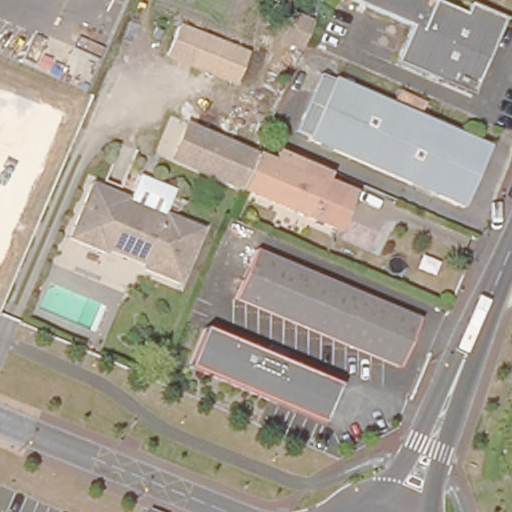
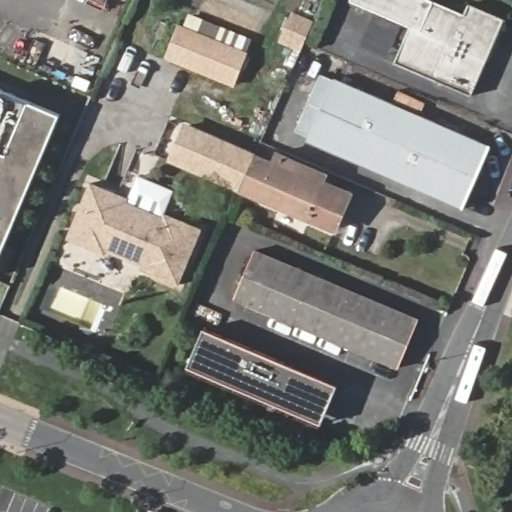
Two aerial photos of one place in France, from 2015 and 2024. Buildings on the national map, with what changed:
unchanged [(428,0),(458,13),(463,0),(499,15),(481,57),(466,91),(440,80),(396,60),(409,29),(361,7),(354,4),(347,1),(347,0),(428,0)]
unchanged [(289,11),(311,20),(297,50),(277,42),(289,11)]
unchanged [(250,52),(236,86),(168,59),(182,24),(250,52)]
unchanged [(488,149),(460,209),(304,135),(292,130),(320,72),(332,75),(488,149)]
new [(0,253),(0,89),(1,90),(28,102),(60,115),(0,253)]
unchanged [(233,183),(168,155),(184,116),(250,145),(233,183)]
unchanged [(349,189),(332,226),(233,183),(250,145),(349,189)]
unchanged [(140,174),(176,190),(164,217),(159,215),(156,220),(123,205),(125,201),(140,174)]
unchanged [(91,186),(125,201),(123,205),(156,220),(159,215),(164,217),(193,230),(172,278),(138,263),(140,260),(106,245),(104,249),(70,235),(91,186)]
unchanged [(234,294),(256,250),(417,318),(397,363),(234,294)]
unchanged [(188,363),(205,325),(285,359),(269,397),(188,363)]
unchanged [(339,381),(323,420),(269,397),(285,359),(339,381)]

